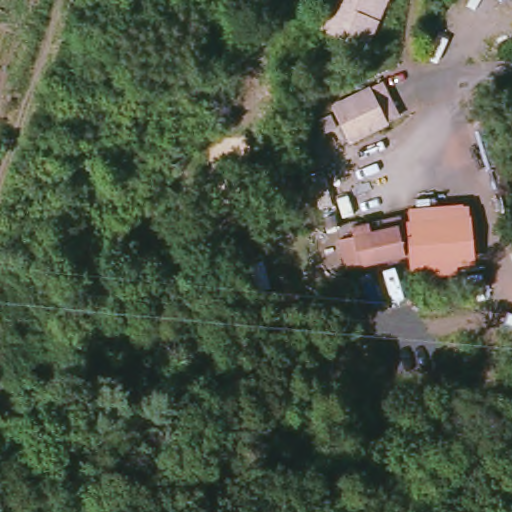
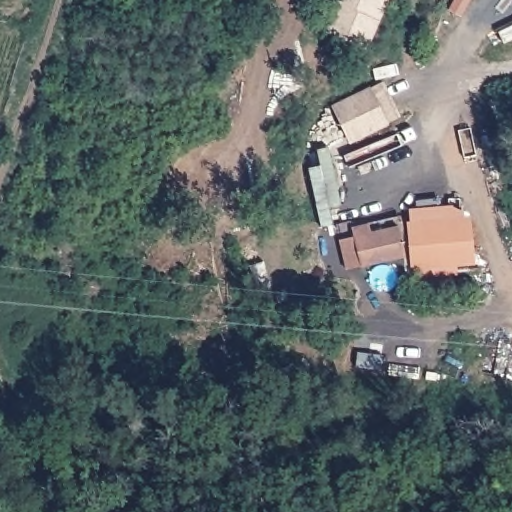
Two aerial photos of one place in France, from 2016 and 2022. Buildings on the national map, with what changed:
unchanged [(370,54),(320,33),(334,0),(392,0),(370,54)]
unchanged [(351,147),(332,108),(372,87),(392,126),(351,147)]
unchanged [(468,217),(476,280),(417,285),(407,222),(468,217)]
unchanged [(397,229),(404,261),(347,272),(341,241),(397,229)]

